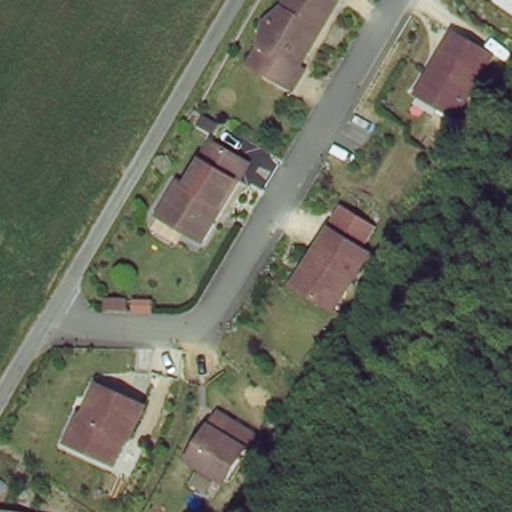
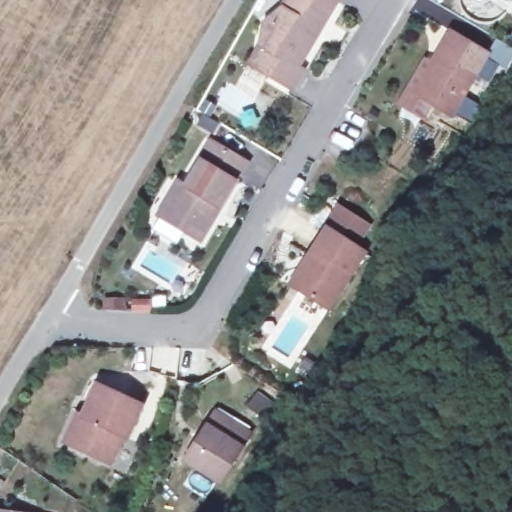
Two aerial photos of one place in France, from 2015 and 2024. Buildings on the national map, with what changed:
unchanged [(259,19),(278,5),(281,0),(332,0),(292,64),(297,67),(285,86),(262,71),(243,60),(254,42),(259,19)]
unchanged [(486,52),(455,116),(431,103),(424,117),(407,107),(415,94),(410,91),(444,30),(486,52)]
unchanged [(154,212),(174,179),(180,182),(208,138),(225,149),(243,160),(232,177),(195,237),(154,212)]
unchanged [(310,256),(328,229),(365,255),(329,310),(300,291),(291,285),(310,256)]
unchanged [(110,298),(109,307),(92,306),(93,297),(110,298)]
unchanged [(138,298),(137,309),(119,308),(119,297),(138,298)]
unchanged [(74,409),(79,411),(94,379),(138,400),(123,432),(120,430),(107,458),(70,441),(61,437),(74,409)]
unchanged [(244,430),(217,479),(180,458),(208,410),(244,430)]
unchanged [(0,506),(30,512),(0,512),(0,506)]

